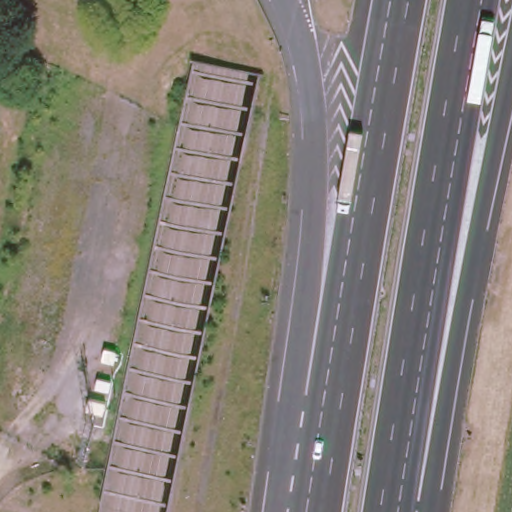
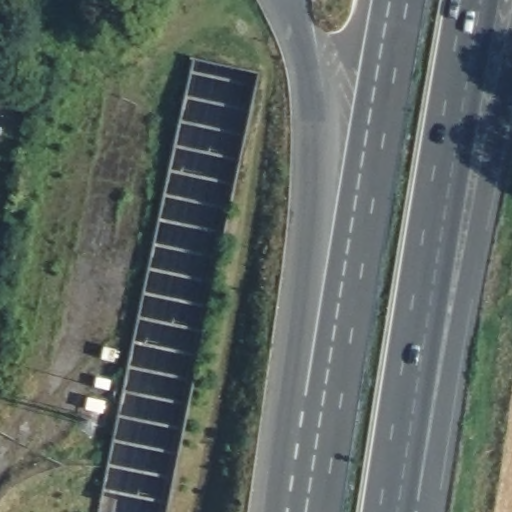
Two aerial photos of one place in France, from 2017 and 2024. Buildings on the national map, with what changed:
unchanged [(98,373),(111,376),(109,386),(96,383),(98,373)]
unchanged [(89,393),(106,398),(104,409),(86,405),(89,393)]

